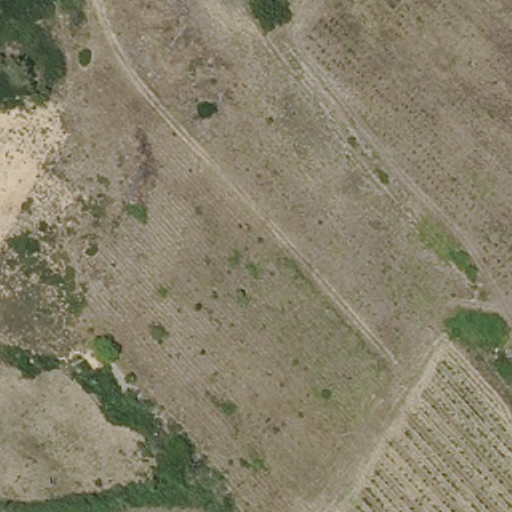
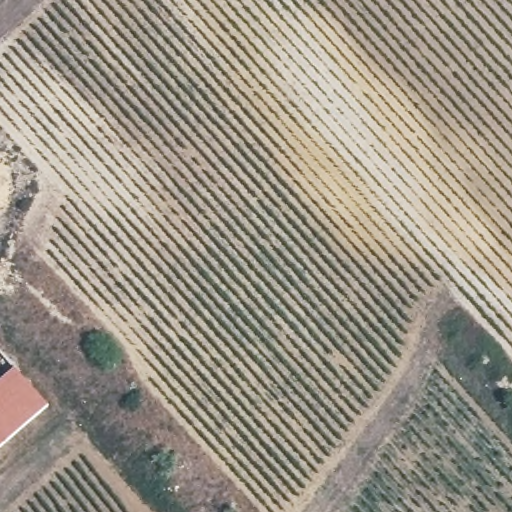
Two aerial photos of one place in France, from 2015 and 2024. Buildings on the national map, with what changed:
new [(15,367),(47,406),(0,447),(0,380),(15,367)]

